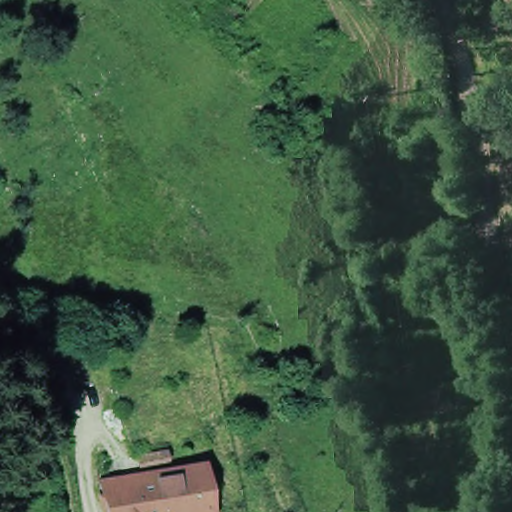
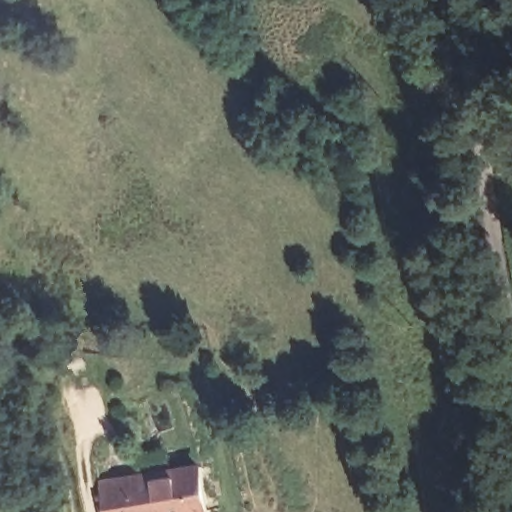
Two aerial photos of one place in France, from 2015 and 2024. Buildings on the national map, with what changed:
unchanged [(106,477),(204,460),(215,512),(113,512),(106,477)]

